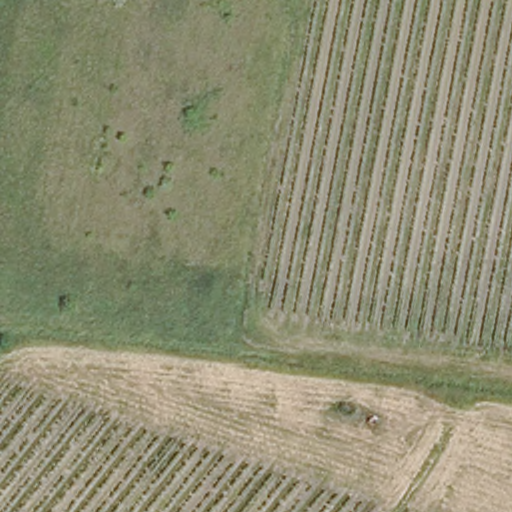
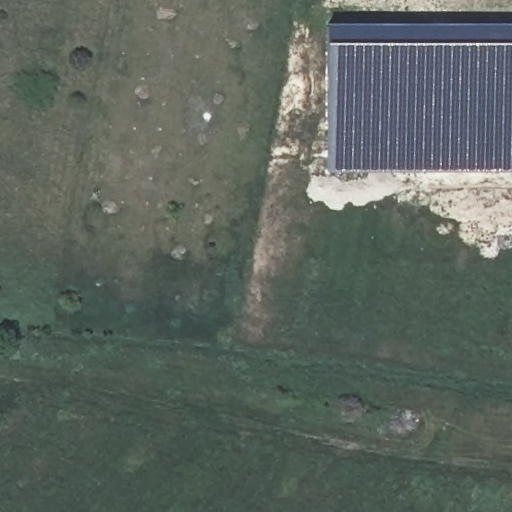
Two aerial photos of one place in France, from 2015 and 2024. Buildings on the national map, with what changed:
new [(512,27),(512,172),(331,172),(327,28),(512,27)]

